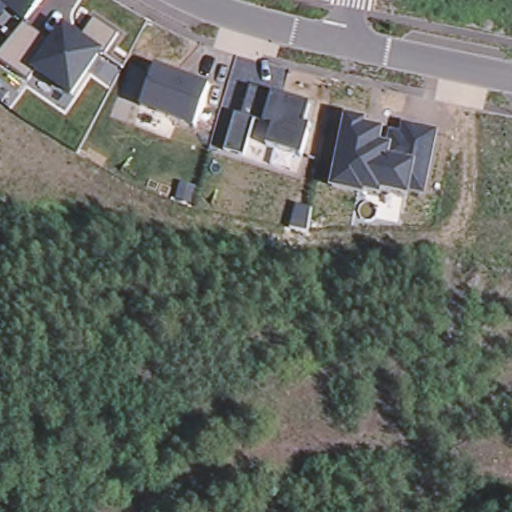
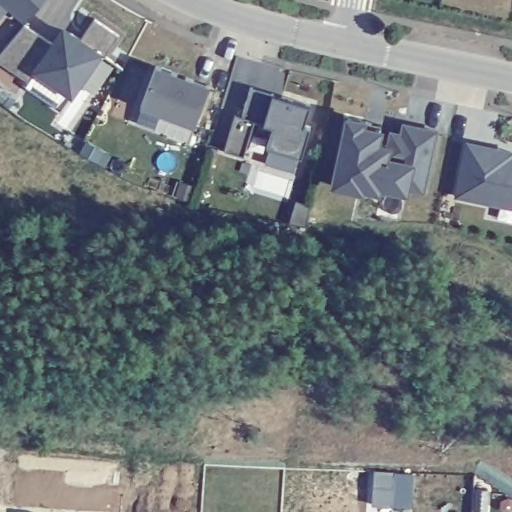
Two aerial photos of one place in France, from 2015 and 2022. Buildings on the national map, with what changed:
unchanged [(25,21),(3,0),(42,0),(25,21)]
unchanged [(117,32),(102,52),(72,99),(34,72),(28,82),(0,60),(0,58),(24,25),(54,41),(62,26),(82,37),(94,19),(117,32)]
unchanged [(210,83),(193,128),(140,108),(158,64),(210,83)]
unchanged [(234,113),(240,114),(249,86),(273,93),(311,104),(304,124),(312,125),(301,156),(267,147),(274,125),(264,122),(253,121),(243,156),(224,149),(234,113)]
unchanged [(436,128),(424,196),(409,190),(409,195),(380,189),(380,194),(363,190),(362,194),(332,186),(345,115),(367,119),(367,126),(385,129),(382,144),(387,144),(390,127),(400,129),(402,121),(436,128)]
new [(471,145),(494,150),(493,154),(512,158),(512,208),(460,197),(471,145)]
new [(512,154),(512,159),(493,154),(494,150),(512,154)]
new [(412,477),(411,506),(375,505),(375,475),(412,477)]

